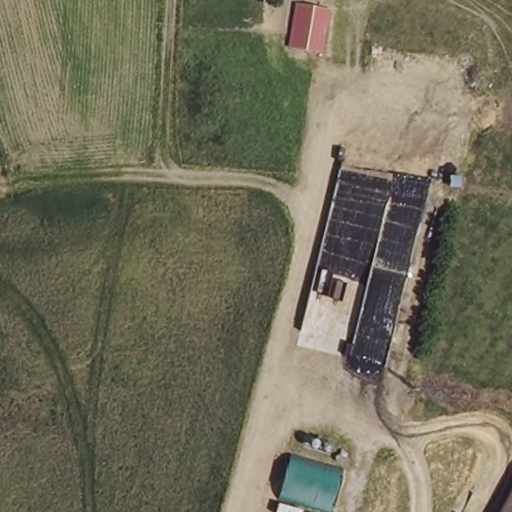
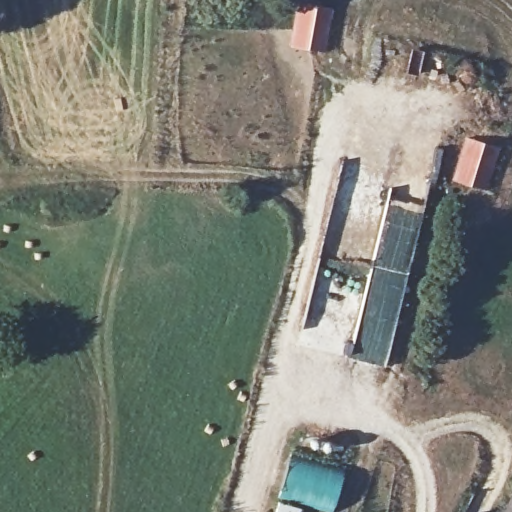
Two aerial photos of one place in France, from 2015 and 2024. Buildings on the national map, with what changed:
unchanged [(334,51),(296,49),(301,1),(340,5),(334,51)]
new [(486,190),(452,180),(465,136),(500,147),(486,190)]
unchanged [(331,512),(327,512),(275,496),(288,450),(344,467),(331,512)]
unchanged [(501,512),(512,492),(512,512),(501,512)]
unchanged [(466,512),(461,512),(462,510),(466,512)]

